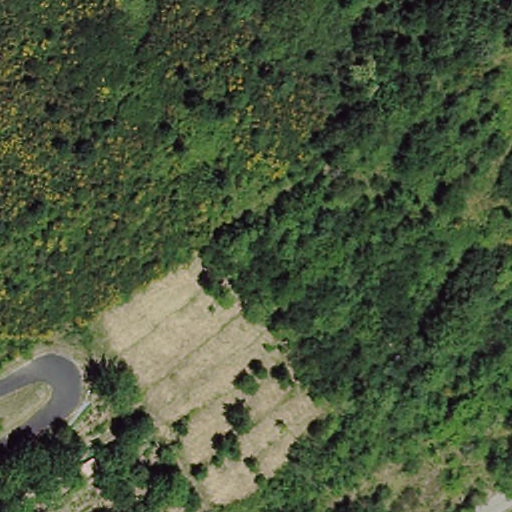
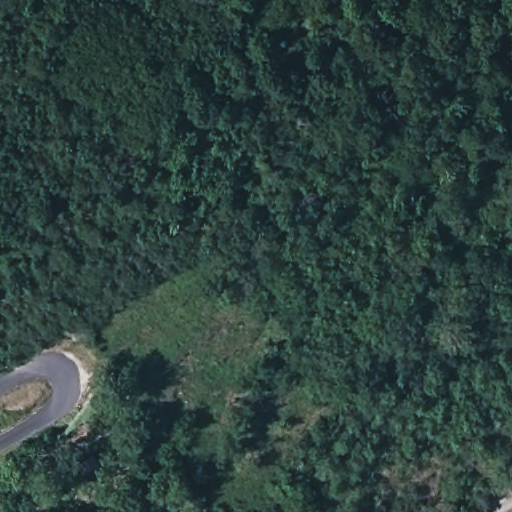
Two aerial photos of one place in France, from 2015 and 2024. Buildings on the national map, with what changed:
unchanged [(3,511),(0,512),(0,504),(3,511)]

